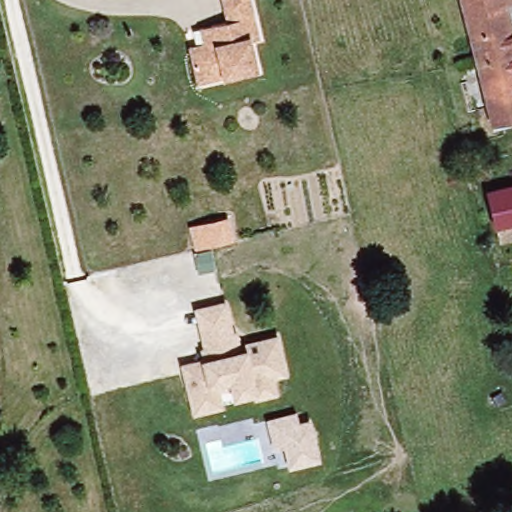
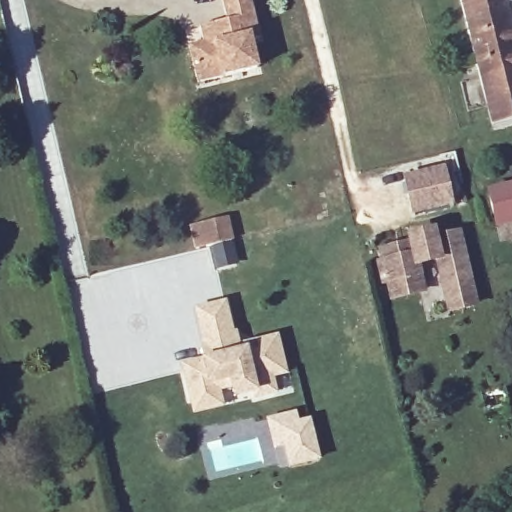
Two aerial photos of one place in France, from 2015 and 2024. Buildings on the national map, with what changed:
unchanged [(202,41),(199,26),(210,24),(225,20),(220,0),(248,0),(258,36),(249,39),(256,67),(197,81),(190,56),(188,45),(202,41)]
unchanged [(490,52),(475,57),(460,0),(512,0),(512,3),(506,5),(511,28),(486,35),(490,52)]
unchanged [(486,101),(475,57),(490,52),(486,35),(511,28),(512,32),(512,120),(492,125),(486,101)]
new [(445,167),(453,207),(411,216),(402,176),(445,167)]
unchanged [(489,191),(512,186),(512,222),(497,225),(489,191)]
unchanged [(195,229),(204,226),(228,220),(233,240),(209,245),(199,247),(195,229)]
new [(476,302),(448,309),(444,288),(389,303),(375,245),(435,230),(436,236),(459,231),(476,302)]
unchanged [(221,409),(194,416),(190,402),(182,369),(202,364),(199,353),(204,352),(194,313),(222,306),(230,335),(233,335),(238,355),(243,353),(241,347),(275,340),(284,375),(270,379),(274,395),(255,400),(254,395),(234,400),(233,395),(231,390),(217,393),(221,409)]
unchanged [(320,460),(288,467),(284,449),(273,452),(266,417),(296,410),(299,420),(309,418),(320,460)]

